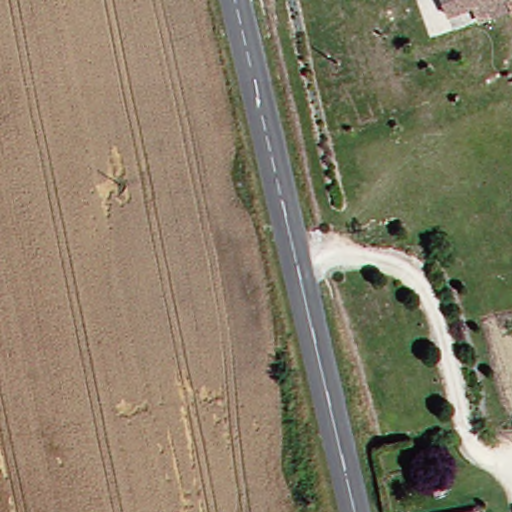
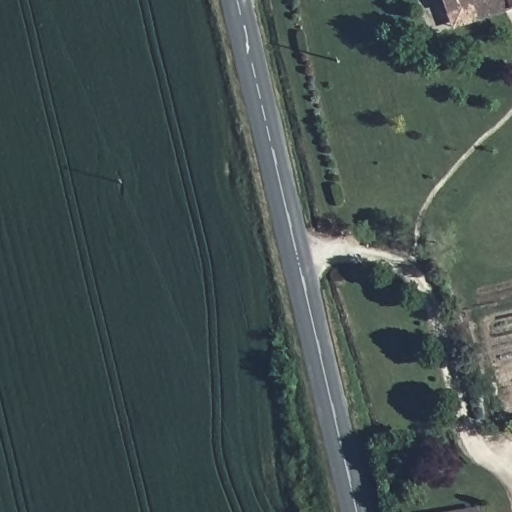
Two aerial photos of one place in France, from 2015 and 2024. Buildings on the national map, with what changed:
unchanged [(445,11),(442,0),(482,0),(445,11)]
unchanged [(512,9),(508,10),(505,0),(512,0),(512,9)]
unchanged [(473,512),(452,512),(471,507),(473,512)]

